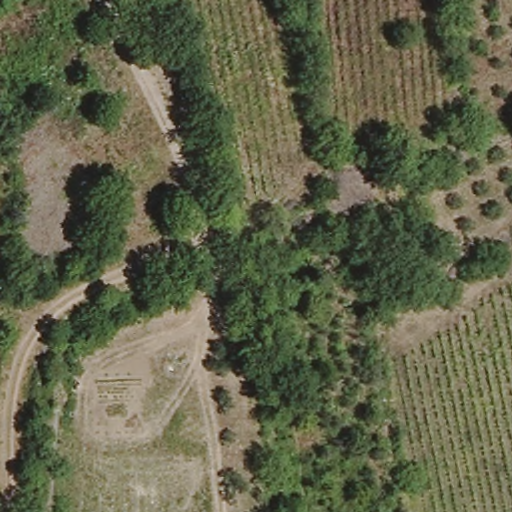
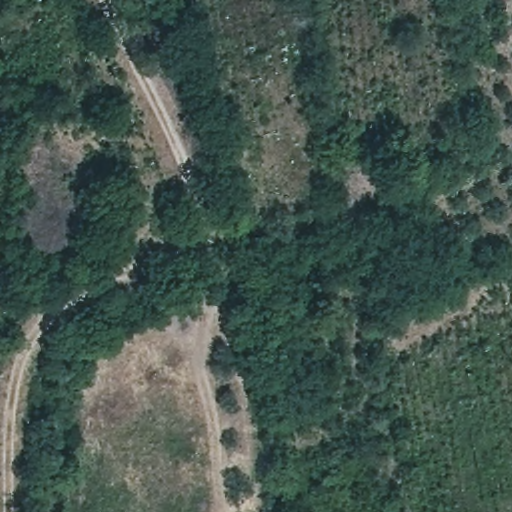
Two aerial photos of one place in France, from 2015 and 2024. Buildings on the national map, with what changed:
unchanged [(192,303),(173,309),(168,289),(186,283),(192,303)]

